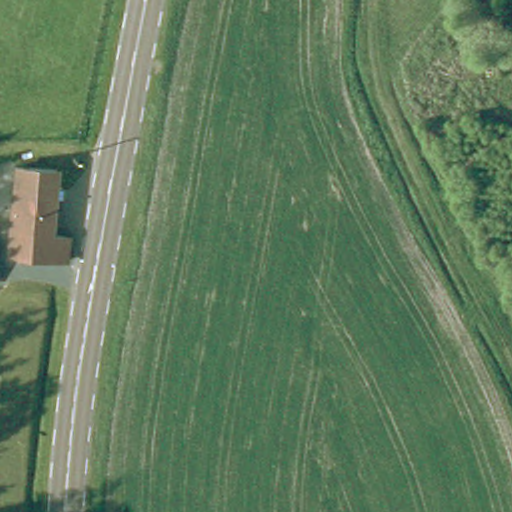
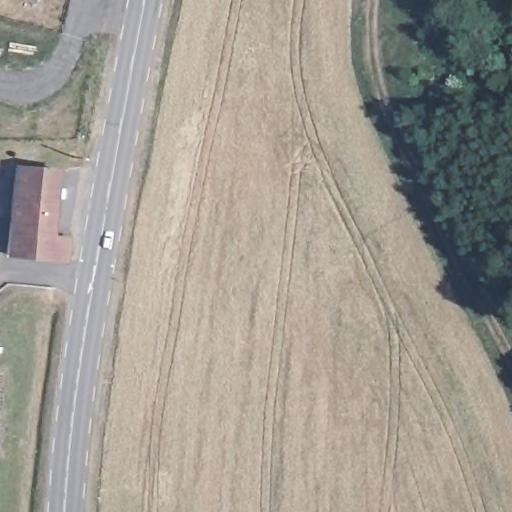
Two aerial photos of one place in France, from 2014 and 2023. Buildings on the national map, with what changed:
unchanged [(60,174),(52,237),(65,239),(62,262),(57,261),(8,255),(20,168),(60,174)]

